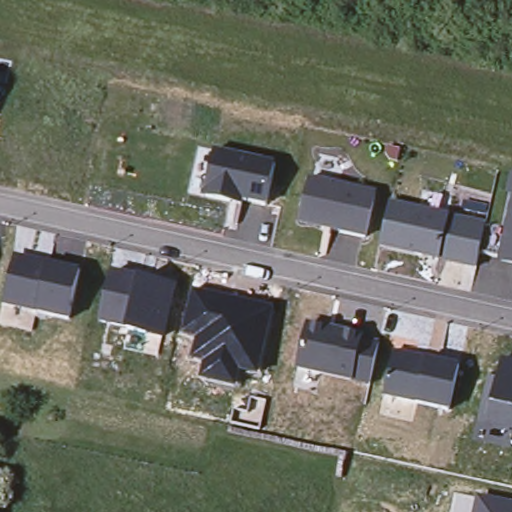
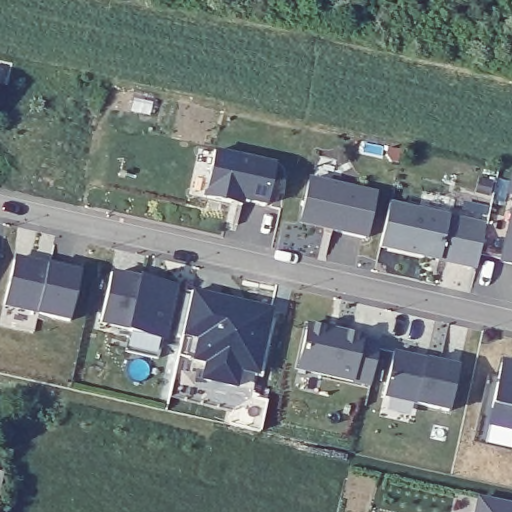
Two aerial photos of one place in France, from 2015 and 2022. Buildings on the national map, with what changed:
unchanged [(230,201),(203,195),(188,191),(192,177),(199,146),(213,149),(275,162),(265,202),(242,197),(240,203),(230,201)]
unchanged [(375,191),(365,235),(300,220),(309,176),(375,191)]
unchanged [(508,195),(512,178),(512,196),(508,195)]
unchanged [(485,223),(475,266),(378,244),(388,202),(388,201),(485,223)]
unchanged [(512,213),(512,266),(502,263),(512,213)]
unchanged [(17,257),(50,264),(80,272),(68,322),(5,308),(17,257)]
unchanged [(112,273),(177,287),(165,341),(101,326),(112,273)]
unchanged [(193,292),(273,308),(261,375),(245,371),(240,390),(200,381),(203,363),(190,361),(195,338),(182,336),(193,292)]
unchanged [(317,391),(292,386),(295,374),(297,366),(302,342),(307,322),(328,326),(341,329),(361,333),(360,337),(378,342),(374,358),(368,382),(321,372),(319,380),(317,391)]
unchanged [(396,350),(457,367),(448,413),(386,397),(396,350)]
unchanged [(502,355),(512,357),(512,426),(487,421),(502,355)]
unchanged [(480,495),(512,502),(512,512),(477,512),(480,495)]

